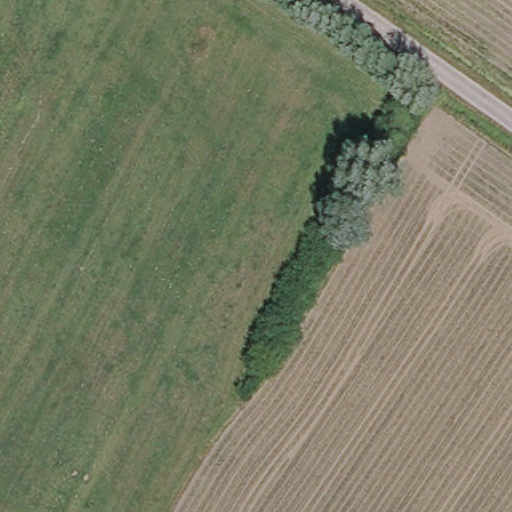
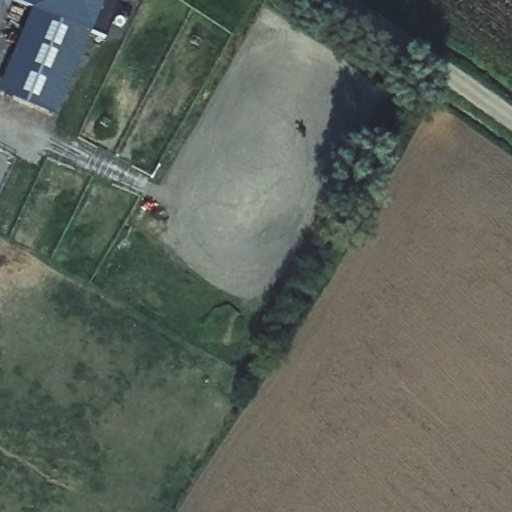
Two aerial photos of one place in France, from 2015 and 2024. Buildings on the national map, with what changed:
new [(113,45),(95,37),(57,120),(6,97),(44,14),(22,3),(23,0),(133,0),(113,45)]

